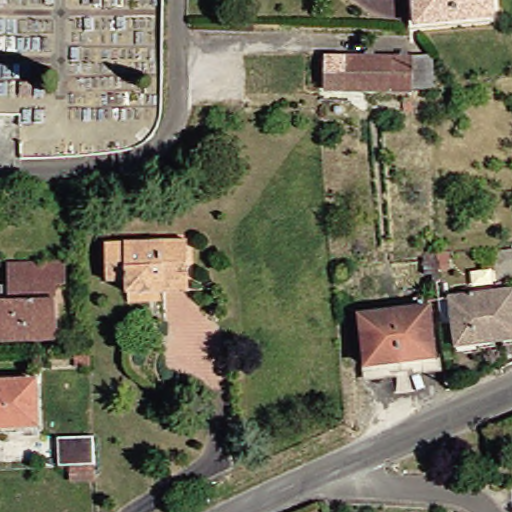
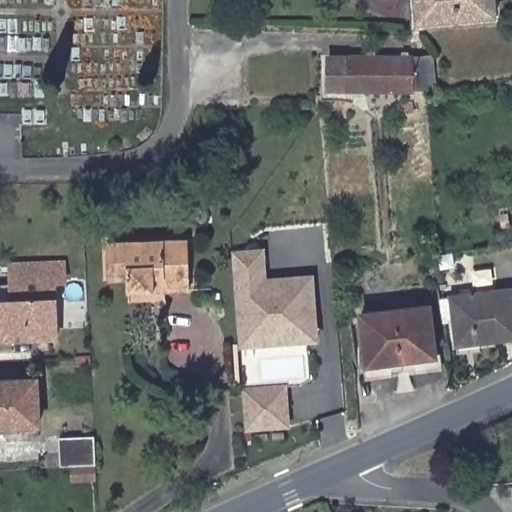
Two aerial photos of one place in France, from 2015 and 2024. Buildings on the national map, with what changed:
unchanged [(498,14),(422,22),(420,0),(497,0),(498,14)]
unchanged [(325,57),(325,103),(249,102),(250,56),(325,57)]
unchanged [(332,57),(416,58),(416,61),(439,61),(440,92),(417,92),(416,92),(416,96),(332,95),(332,57)]
unchanged [(152,296),(124,297),(124,283),(104,285),(102,246),(185,243),(186,282),(186,295),(152,296)]
new [(317,333),(300,335),(299,327),(239,332),(235,283),(232,253),(263,251),(265,281),(312,277),(317,333)]
unchanged [(0,345),(0,288),(6,287),(5,267),(61,265),(62,284),(50,285),(54,342),(0,345)]
unchanged [(460,347),(454,299),(512,292),(512,341),(460,347)]
unchanged [(400,365),(395,312),(429,308),(436,361),(400,365)]
unchanged [(367,368),(360,317),(395,312),(400,365),(367,368)]
new [(299,327),(300,335),(317,333),(317,341),(240,347),(239,332),(299,327)]
unchanged [(0,379),(34,377),(36,426),(0,428),(0,379)]
new [(286,388),(290,427),(246,432),(242,391),(286,388)]
unchanged [(67,465),(57,466),(55,436),(90,435),(91,464),(92,480),(69,480),(67,465)]

